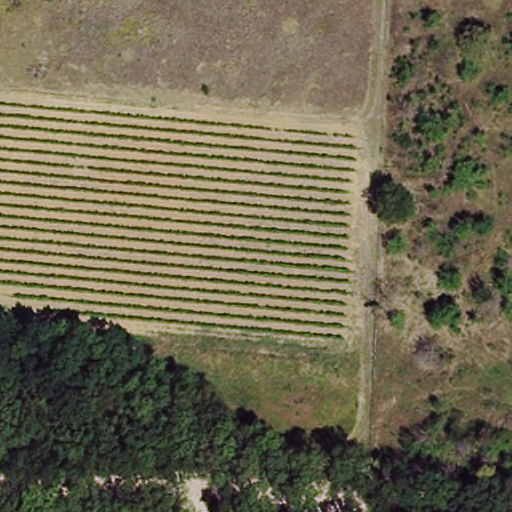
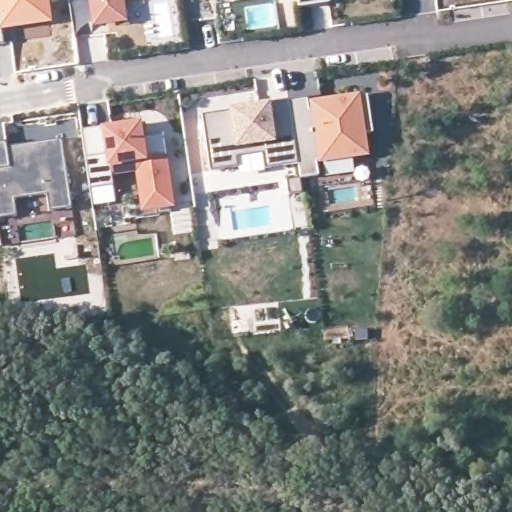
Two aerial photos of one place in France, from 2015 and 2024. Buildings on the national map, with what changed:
new [(52,24),(48,24),(23,28),(2,30),(0,31),(0,0),(49,0),(52,24)]
new [(124,19),(95,22),(92,0),(121,0),(124,19)]
new [(330,1),(299,6),(298,0),(329,0),(330,1)]
new [(307,98),(309,109),(322,107),(321,100),(367,94),(373,132),(363,133),(367,153),(317,161),(319,175),(300,177),(298,163),(290,101),(307,98)]
new [(267,104),(267,102),(289,99),(290,101),(298,163),(265,168),(263,152),(237,156),(238,166),(211,170),(202,114),(267,104)]
new [(105,126),(105,128),(138,123),(140,136),(163,132),(167,154),(164,154),(172,203),(144,208),(138,168),(112,172),(113,184),(90,188),(82,129),(105,126)]
new [(7,146),(62,138),(72,208),(50,211),(47,193),(15,198),(17,215),(0,218),(0,141),(6,140),(7,146)]

